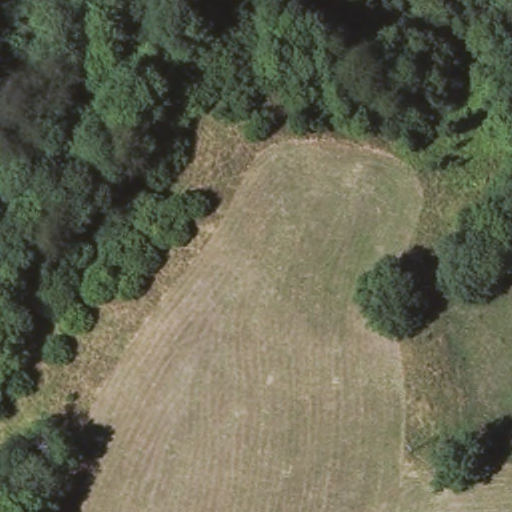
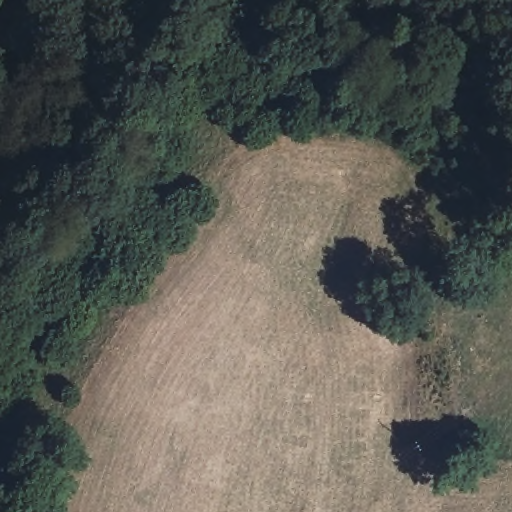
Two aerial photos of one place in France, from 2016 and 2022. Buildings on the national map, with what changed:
[]

